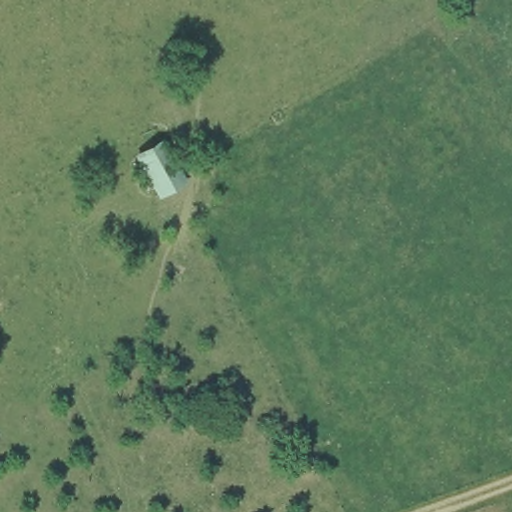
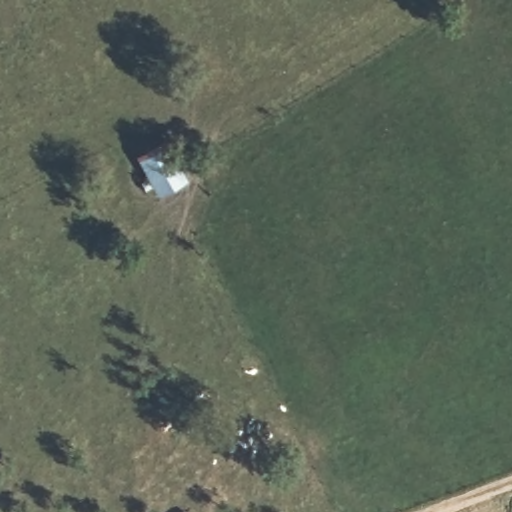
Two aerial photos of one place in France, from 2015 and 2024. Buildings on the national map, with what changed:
unchanged [(185,189),(162,200),(135,156),(162,142),(185,189)]

